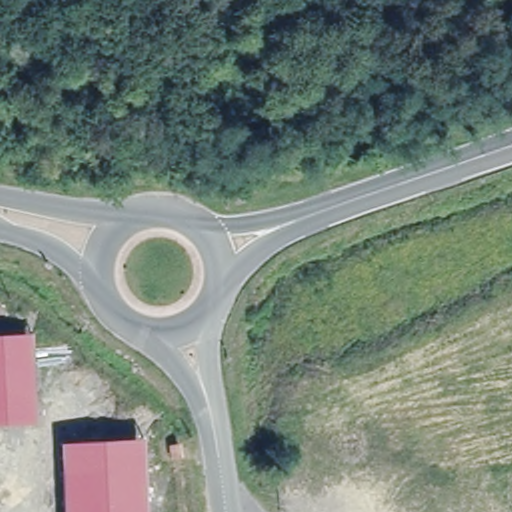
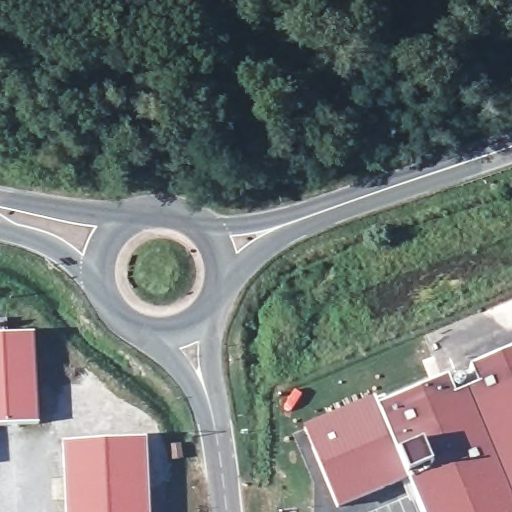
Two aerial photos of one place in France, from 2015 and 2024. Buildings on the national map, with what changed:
unchanged [(32,334),(37,424),(0,426),(0,335),(32,334)]
new [(378,403),(448,374),(456,392),(478,383),(470,364),(512,347),(512,512),(423,512),(408,475),(338,503),(306,425),(375,397),(378,403)]
unchanged [(61,444),(144,439),(147,512),(65,512),(61,444)]

